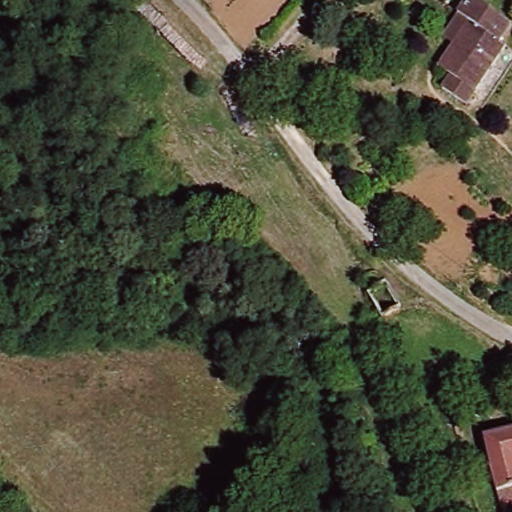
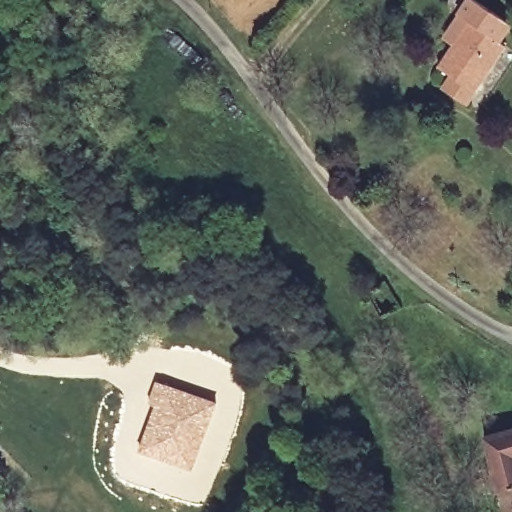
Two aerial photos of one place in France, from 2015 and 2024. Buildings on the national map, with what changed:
unchanged [(512,29),(503,44),(510,49),(468,106),(443,89),(450,77),(440,70),(468,23),(460,16),(471,0),(475,0),(512,25),(512,29)]
demolished [(167,121),(173,148),(151,151),(146,125),(167,121)]
unchanged [(137,255),(140,241),(157,244),(155,258),(137,255)]
new [(191,468),(140,451),(155,405),(148,403),(156,382),(214,404),(191,468)]
unchanged [(495,463),(487,437),(512,431),(512,512),(501,512),(487,465),(495,463)]

